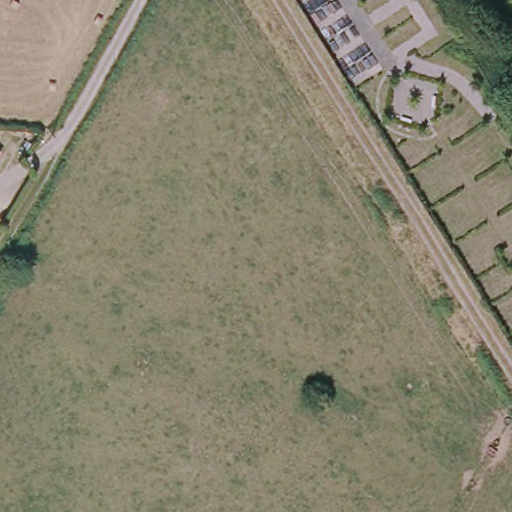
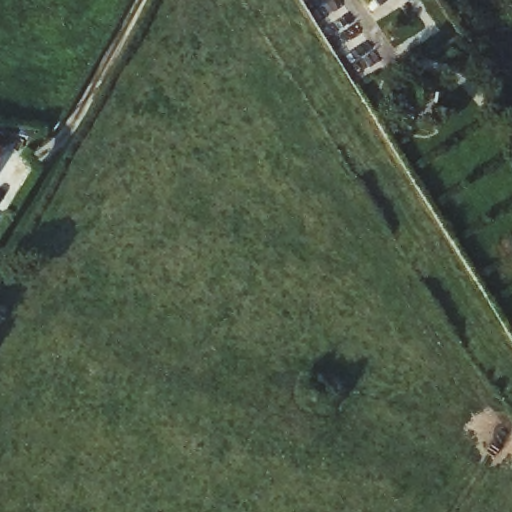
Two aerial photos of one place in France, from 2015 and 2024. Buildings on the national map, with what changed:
unchanged [(0,164),(0,155),(4,158),(0,164)]

